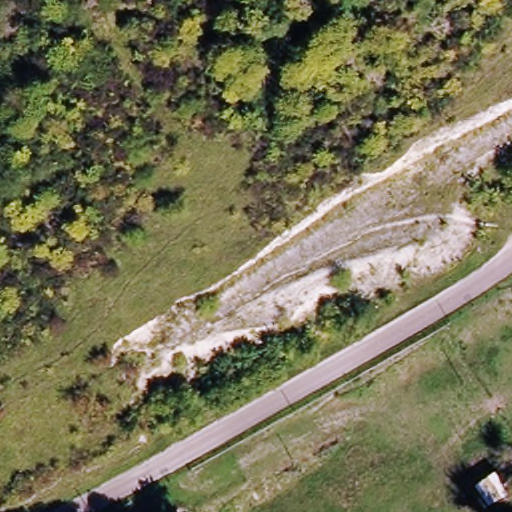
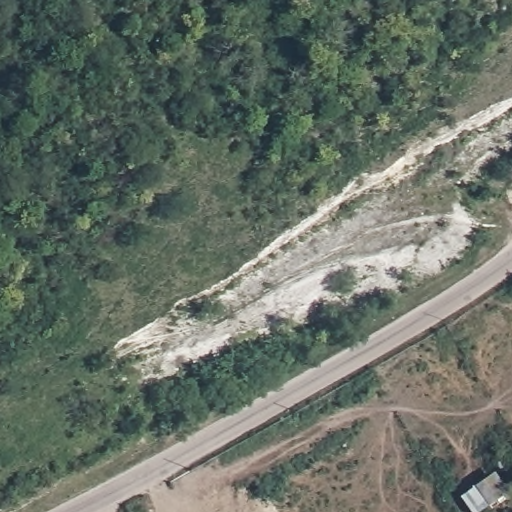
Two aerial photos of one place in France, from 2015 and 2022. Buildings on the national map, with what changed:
[]

